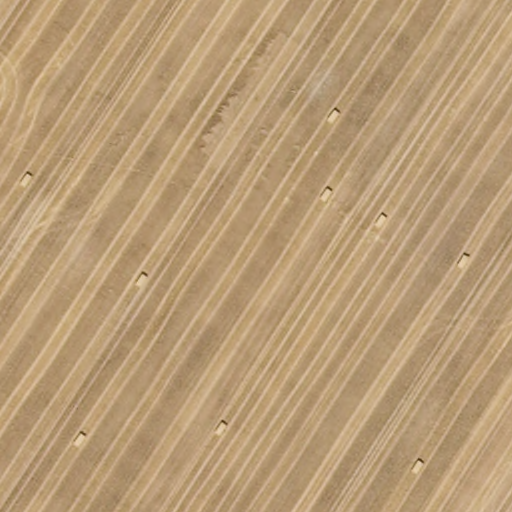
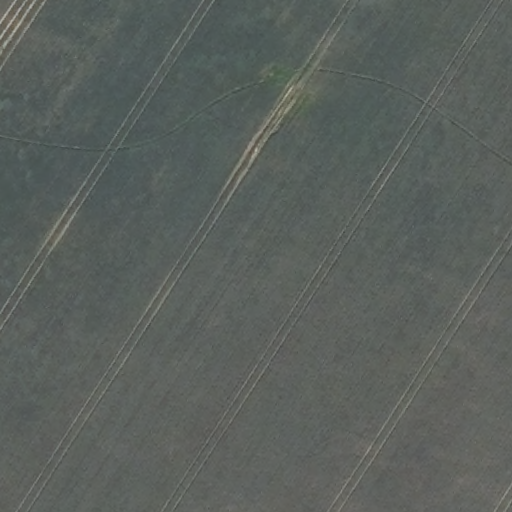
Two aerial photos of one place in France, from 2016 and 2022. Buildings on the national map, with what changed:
[]

